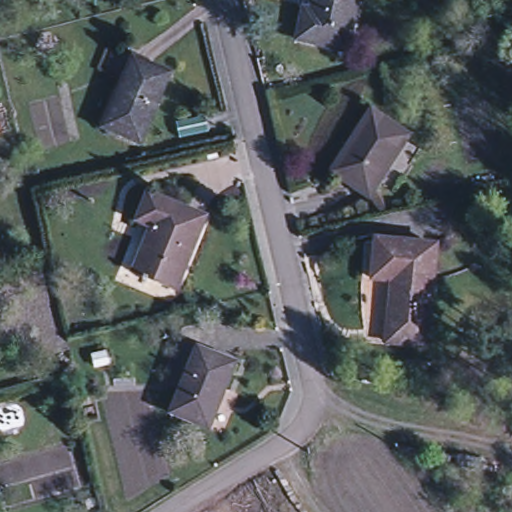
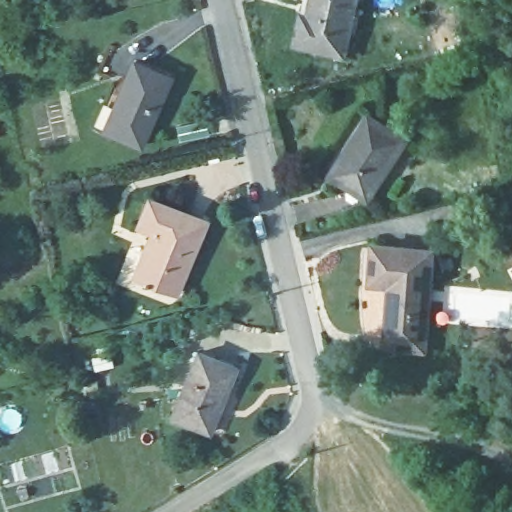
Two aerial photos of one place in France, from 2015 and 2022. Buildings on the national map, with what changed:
unchanged [(310,25),(316,0),(358,0),(345,56),(297,45),(302,24),(310,25)]
unchanged [(134,59),(170,74),(142,142),(106,126),(134,59)]
unchanged [(355,143),(353,142),(374,111),(410,136),(369,198),(335,175),(355,143)]
unchanged [(157,226),(143,220),(152,197),(207,220),(180,289),(139,272),(157,226)]
unchanged [(389,345),(390,334),(395,284),(376,282),(380,242),(439,249),(430,339),(428,349),(389,345)]
unchanged [(196,349),(232,364),(205,428),(170,412),(196,349)]

